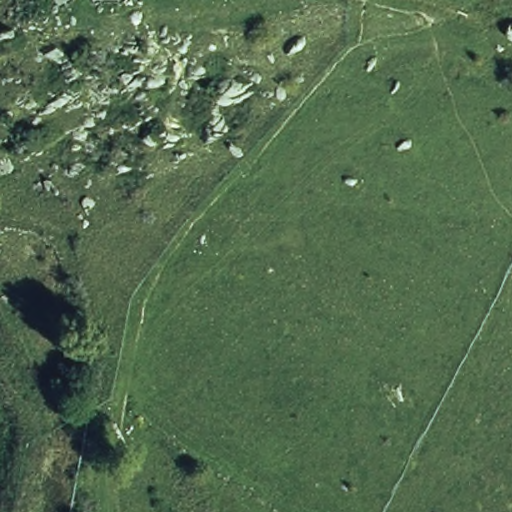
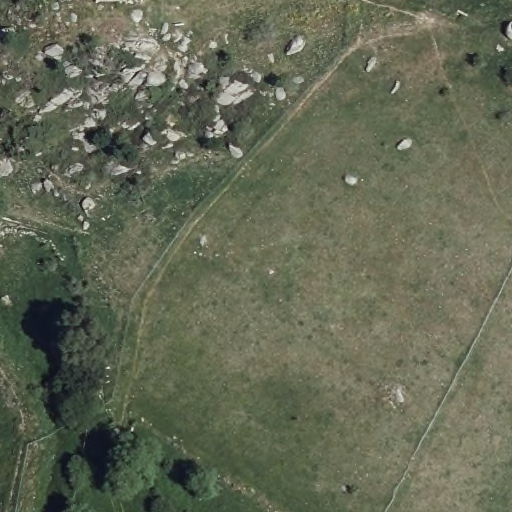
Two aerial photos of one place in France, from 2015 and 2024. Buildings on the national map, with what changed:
unchanged [(59,2),(57,0),(65,0),(59,2)]
unchanged [(141,5),(91,4),(86,0),(142,0),(141,5)]

